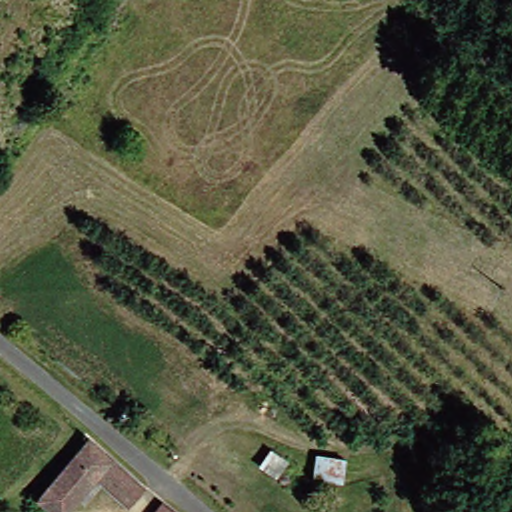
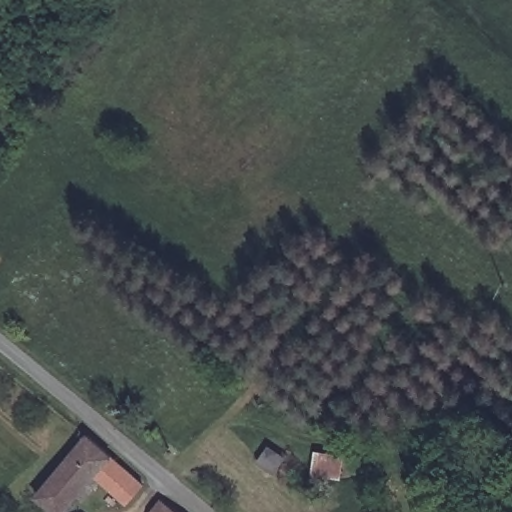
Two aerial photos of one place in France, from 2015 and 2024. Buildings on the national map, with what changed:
unchanged [(90,481),(65,512),(49,512),(36,501),(83,439),(131,479),(113,498),(90,481)]
unchanged [(313,471),(315,445),(346,448),(342,475),(313,471)]
unchanged [(155,498),(172,512),(145,512),(144,511),(155,498)]

